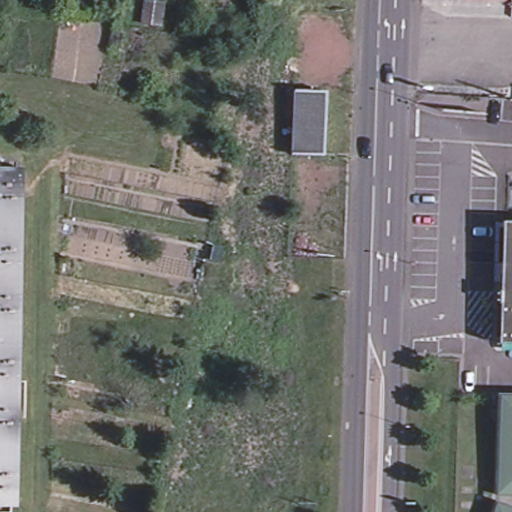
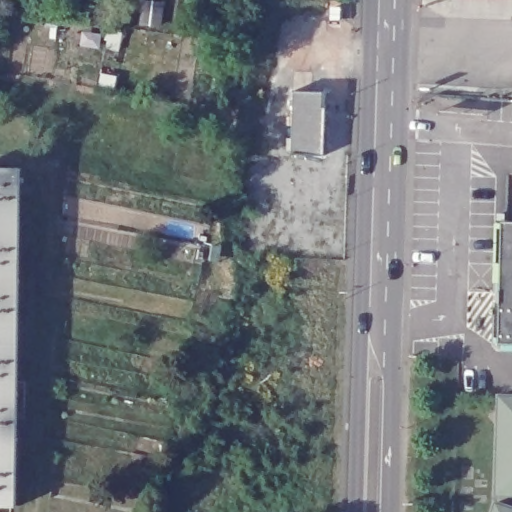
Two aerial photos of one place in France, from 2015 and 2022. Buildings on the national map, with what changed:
unchanged [(291,156),(295,94),(327,96),(323,158),(291,156)]
unchanged [(0,279),(0,165),(20,166),(17,279),(0,279)]
unchanged [(512,221),(512,257),(507,257),(508,221),(512,221)]
unchanged [(507,257),(512,257),(512,345),(505,345),(507,257)]
unchanged [(15,390),(0,390),(0,279),(17,279),(15,390)]
unchanged [(12,502),(0,501),(0,390),(15,390),(12,502)]
unchanged [(512,396),(512,495),(497,495),(501,396),(512,396)]
unchanged [(512,507),(497,502),(497,495),(512,495),(512,507)]
unchanged [(512,512),(494,512),(497,502),(512,507),(512,512)]

